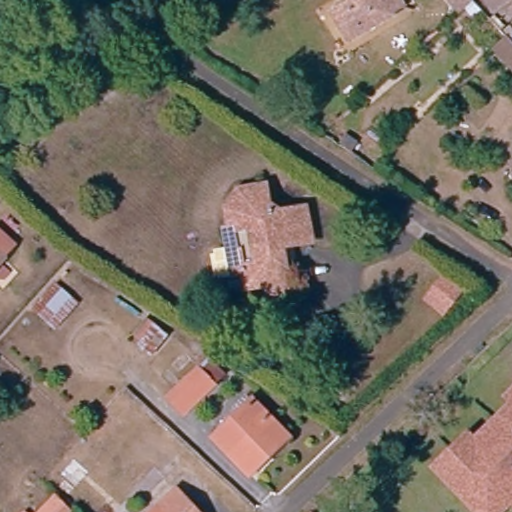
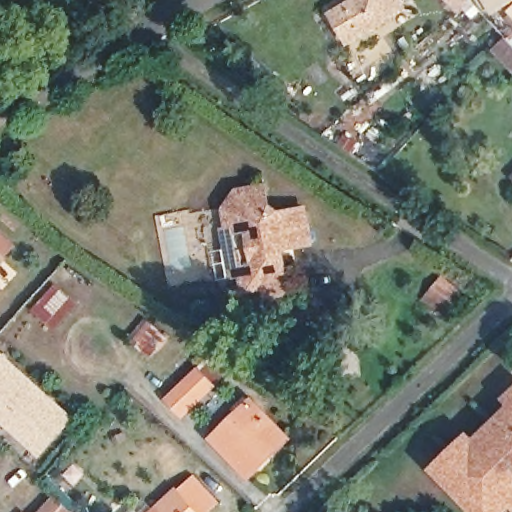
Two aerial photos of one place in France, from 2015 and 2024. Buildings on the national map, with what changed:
unchanged [(398,0),(403,10),(348,42),(332,14),(357,0),(398,0)]
unchanged [(473,0),(460,13),(447,0),(473,0)]
unchanged [(493,0),(512,0),(512,1),(497,9),(493,0)]
unchanged [(511,39),(512,41),(512,72),(495,53),(511,39)]
unchanged [(512,180),(512,187),(508,183),(512,180)]
unchanged [(224,252),(221,230),(228,229),(226,203),(237,189),(262,186),(266,213),(305,211),(310,245),(281,249),(282,265),(287,301),(266,303),(263,290),(242,292),(239,276),(227,277),(224,252)]
unchanged [(6,259),(0,265),(0,254),(6,259)]
unchanged [(444,268),(462,286),(436,311),(419,293),(444,268)]
unchanged [(57,282),(71,295),(50,317),(35,305),(57,282)]
unchanged [(147,315),(167,334),(149,351),(129,334),(147,315)]
new [(77,417),(41,458),(0,421),(0,353),(2,350),(77,417)]
unchanged [(157,406),(190,374),(200,363),(216,379),(205,389),(173,421),(157,406)]
unchanged [(287,441),(250,476),(215,437),(210,432),(233,409),(245,398),(287,441)]
unchanged [(512,502),(501,512),(473,512),(437,473),(512,402),(512,502)]
demolished [(147,421),(150,424),(147,429),(151,433),(132,454),(124,446),(147,421)]
demolished [(105,501),(105,497),(131,472),(149,490),(137,502),(129,496),(113,512),(96,512),(105,501)]
unchanged [(171,491),(190,512),(149,512),(171,491)]
unchanged [(52,502),(62,512),(42,512),(52,502)]

